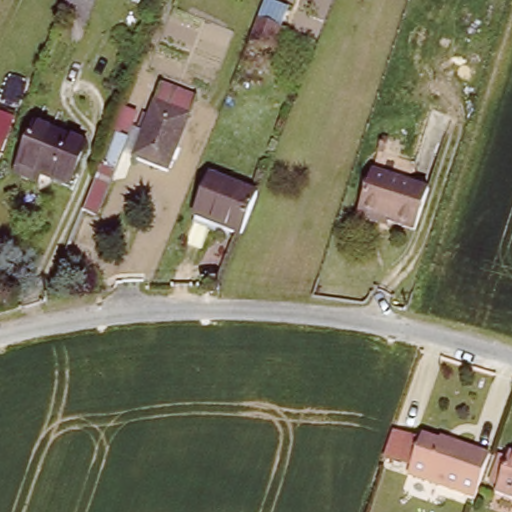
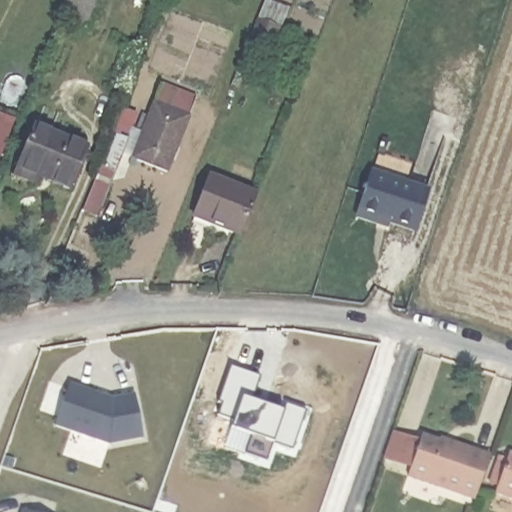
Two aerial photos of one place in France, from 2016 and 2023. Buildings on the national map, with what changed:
unchanged [(73,0),(103,0),(90,35),(62,26),(73,0)]
unchanged [(172,169),(138,156),(163,85),(197,97),(172,169)]
unchanged [(22,172),(25,163),(40,125),(59,132),(62,126),(69,128),(67,135),(90,144),(75,183),(47,172),(44,181),(22,172)]
unchanged [(100,169),(116,175),(98,220),(82,214),(100,169)]
unchanged [(380,221),(360,214),(374,169),(412,182),(430,188),(417,227),(394,220),(392,225),(380,221)]
unchanged [(243,239),(196,221),(211,181),(260,199),(243,239)]
new [(222,403),(218,402),(231,366),(261,376),(252,401),(283,411),(286,404),(307,411),(293,450),(273,444),(267,462),(245,455),(252,436),(231,430),(234,421),(218,416),(222,403)]
new [(69,384),(112,399),(135,394),(144,438),(107,444),(55,425),(69,384)]
unchanged [(478,505),(413,481),(427,442),(478,460),(480,457),(493,461),(478,505)]
unchanged [(512,464),(512,501),(500,497),(512,464)]
new [(22,511),(26,512),(22,512),(22,511)]

